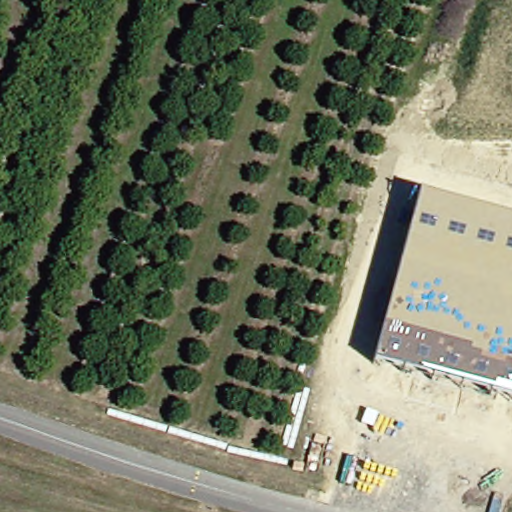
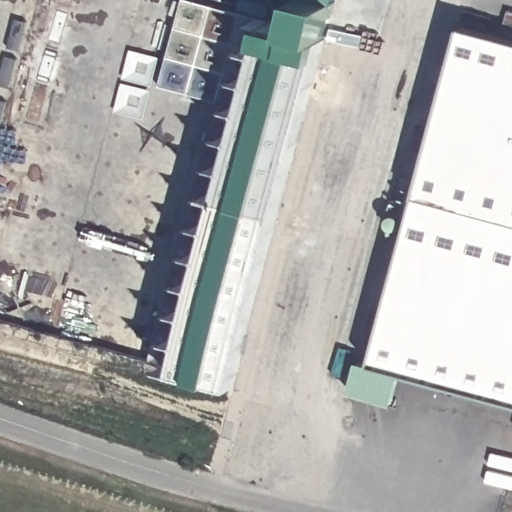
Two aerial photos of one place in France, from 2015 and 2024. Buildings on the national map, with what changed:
new [(267,39),(270,21),(296,26),(305,0),(336,0),(338,1),(329,37),(325,56),(234,387),(176,370),(267,39)]
new [(338,0),(338,1),(336,0),(338,0)]
new [(417,197),(455,35),(512,50),(512,222),(417,197)]
new [(373,362),(417,197),(512,222),(512,400),(373,362)]
new [(358,358),(373,362),(402,371),(392,406),(350,393),(358,358)]

